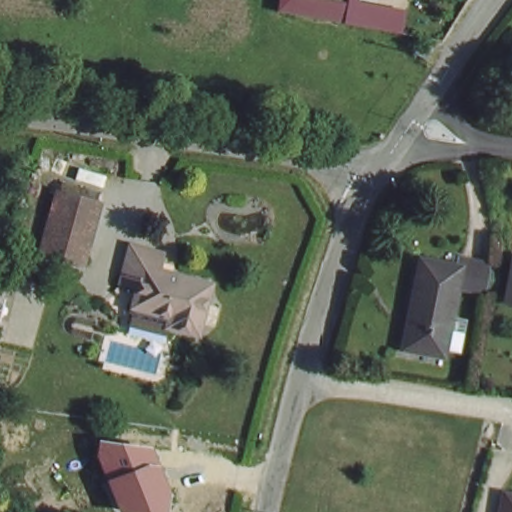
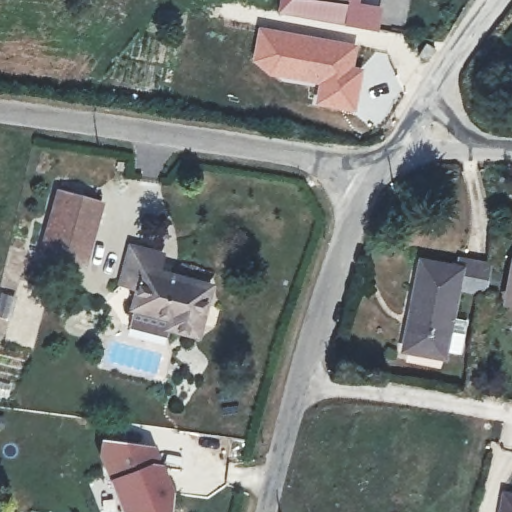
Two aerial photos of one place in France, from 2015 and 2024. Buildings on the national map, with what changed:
new [(358,0),(381,5),(378,29),(276,11),(278,0),(358,0)]
new [(258,24),(309,32),(360,44),(355,65),(365,67),(357,114),(314,105),(316,84),(272,76),(251,60),(258,24)]
unchanged [(43,251),(60,193),(103,202),(85,264),(43,251)]
unchanged [(500,296),(507,255),(512,255),(512,297),(500,296)]
unchanged [(168,333),(173,323),(136,313),(140,298),(123,293),(132,257),(163,264),(159,276),(211,291),(199,340),(168,333)]
unchanged [(488,298),(458,293),(445,361),(409,356),(417,301),(412,301),(419,265),(461,271),(462,260),(493,265),(488,298)]
unchanged [(170,490),(167,512),(122,512),(119,511),(96,455),(97,440),(151,446),(170,490)]
unchanged [(512,500),(512,512),(501,512),(503,498),(512,500)]

